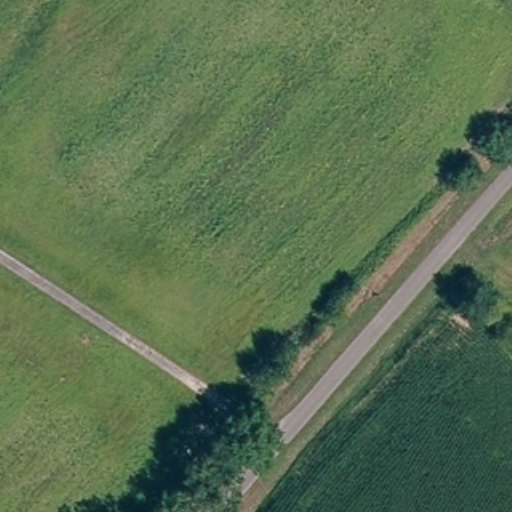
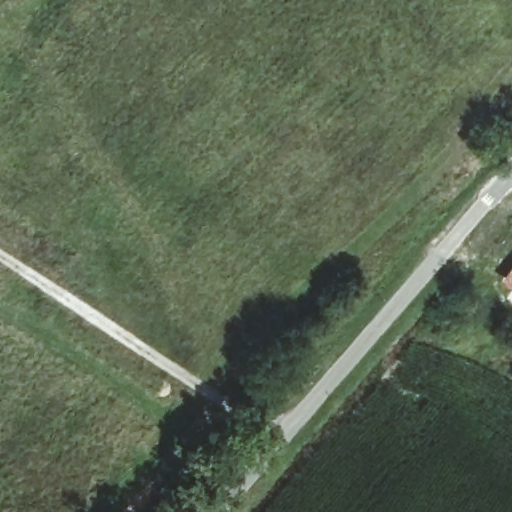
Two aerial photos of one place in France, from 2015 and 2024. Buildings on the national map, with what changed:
new [(512,267),(512,292),(500,282),(512,267)]

